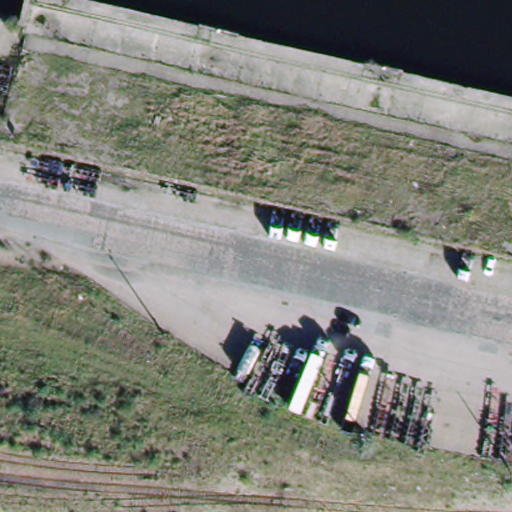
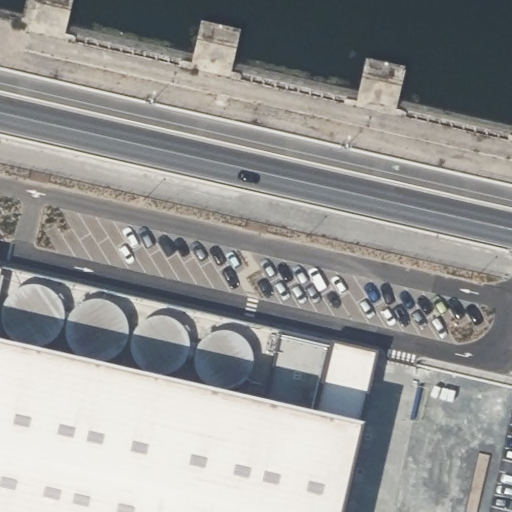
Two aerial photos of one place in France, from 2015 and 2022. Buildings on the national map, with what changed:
new [(343,438),(329,512),(0,512),(0,360),(343,438)]

